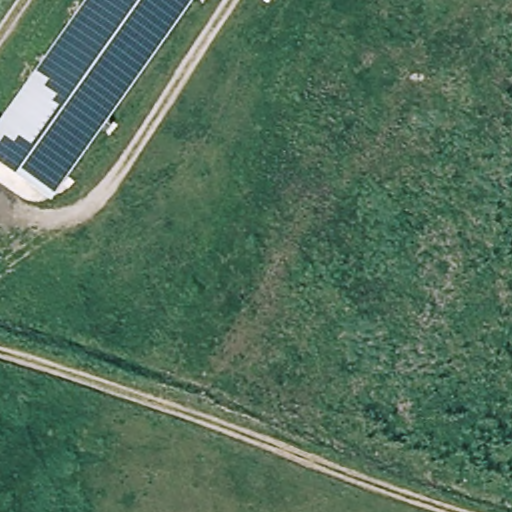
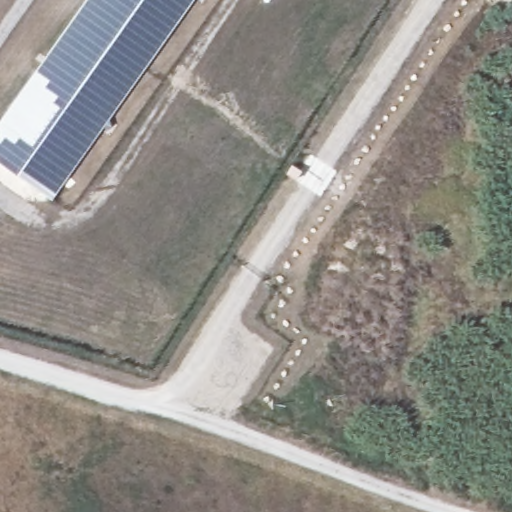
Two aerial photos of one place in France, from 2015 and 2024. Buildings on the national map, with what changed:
unchanged [(0,161),(0,128),(89,0),(186,0),(52,197),(0,161)]

